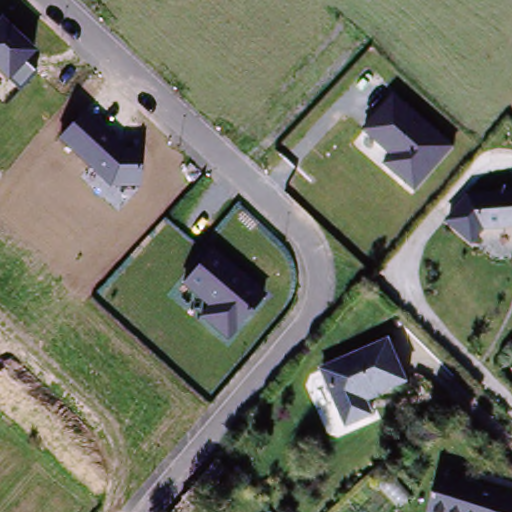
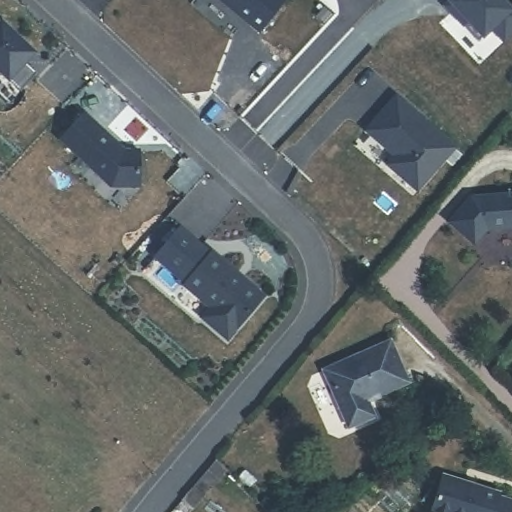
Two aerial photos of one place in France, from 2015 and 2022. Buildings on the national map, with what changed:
new [(286,0),(260,34),(234,14),(226,7),(217,0),(286,0)]
new [(512,8),(512,33),(500,44),(488,31),(475,44),(460,29),(441,7),(449,0),(496,0),(507,12),(512,8)]
unchanged [(0,19),(1,17),(37,52),(25,63),(37,75),(19,92),(0,74),(0,19)]
unchanged [(384,167),(393,157),(363,132),(393,97),(457,149),(416,194),(384,167)]
unchanged [(111,190),(55,141),(82,115),(121,150),(137,150),(140,188),(111,190)]
unchanged [(485,230),(472,243),(447,219),(470,192),(512,189),(512,228),(485,230)]
unchanged [(198,320),(208,308),(180,286),(210,250),(265,297),(227,342),(198,320)]
unchanged [(389,343),(408,385),(367,405),(375,421),(347,435),(318,372),(389,343)]
unchanged [(512,503),(512,512),(432,512),(442,475),(512,503)]

